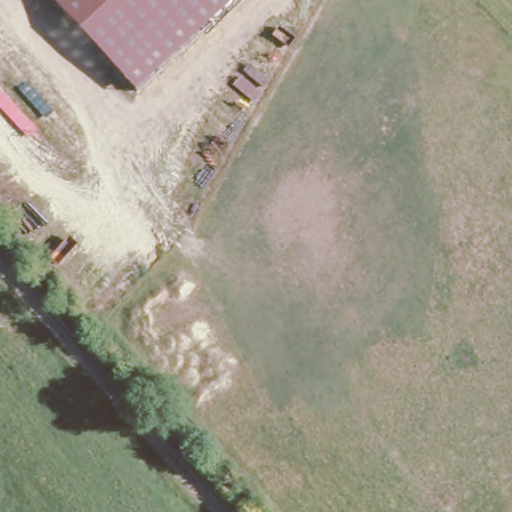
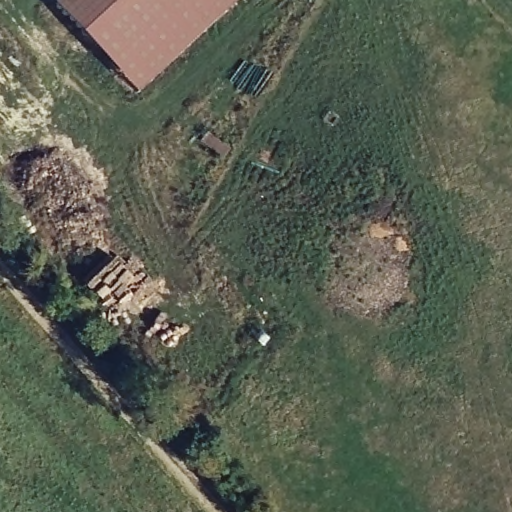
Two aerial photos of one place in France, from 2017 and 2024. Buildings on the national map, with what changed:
unchanged [(55,3),(59,0),(235,0),(138,92),(55,3)]

